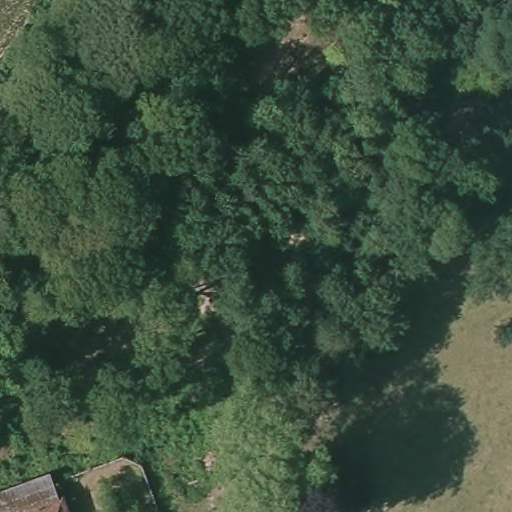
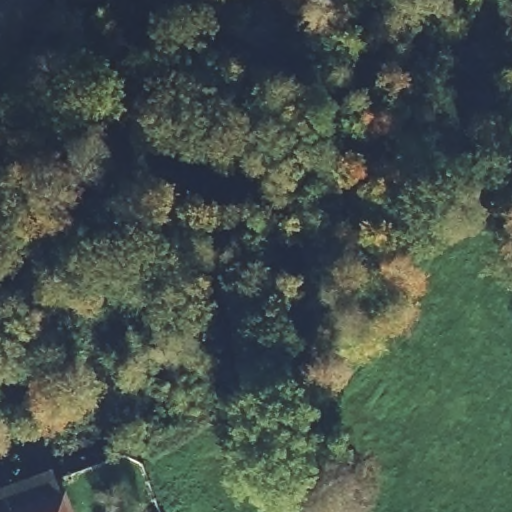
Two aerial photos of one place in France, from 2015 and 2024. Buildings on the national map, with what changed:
unchanged [(63,495),(68,512),(0,512),(0,491),(50,473),(51,480),(58,497),(63,495)]

